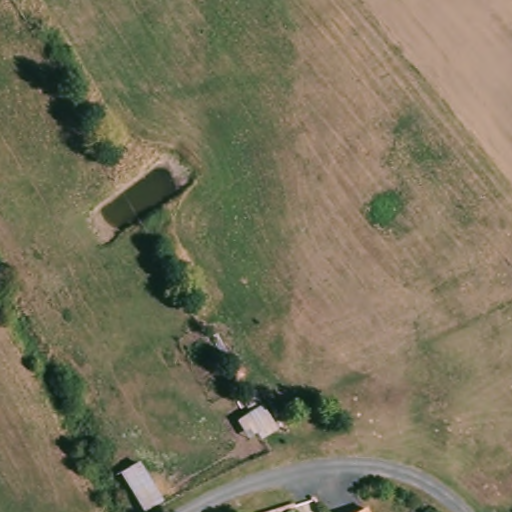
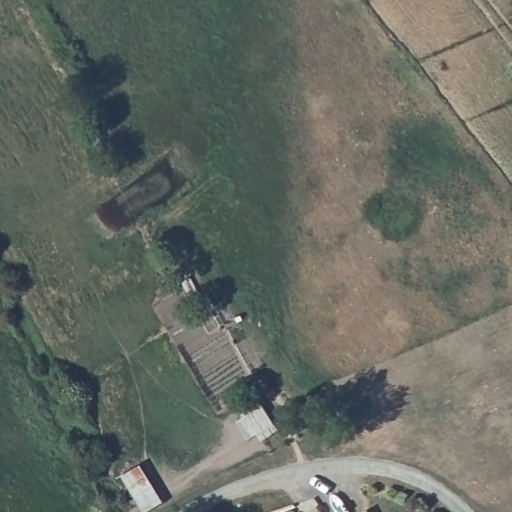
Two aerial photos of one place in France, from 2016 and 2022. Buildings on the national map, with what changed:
unchanged [(372,512),(360,512),(368,506),(372,512)]

